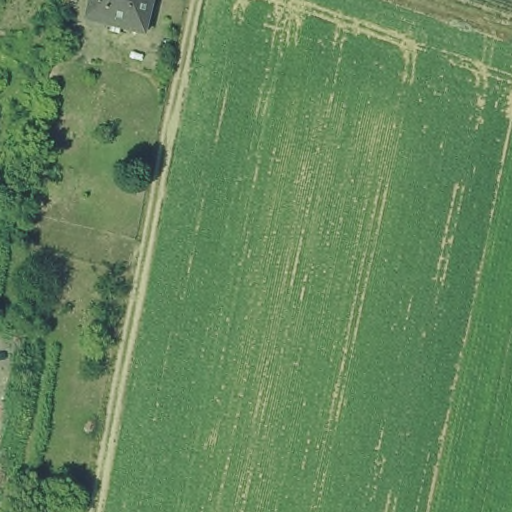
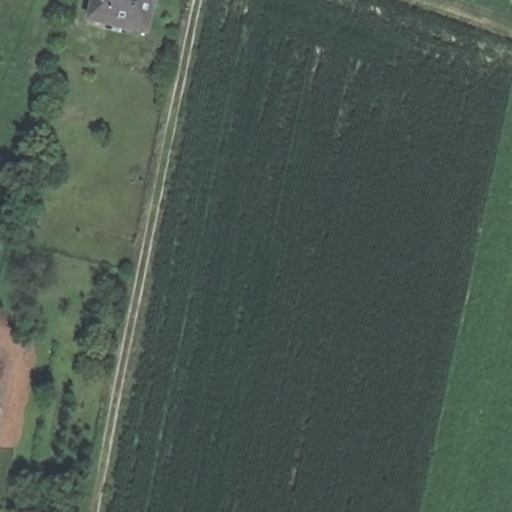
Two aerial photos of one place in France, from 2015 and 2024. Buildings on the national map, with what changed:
unchanged [(101,24),(84,19),(90,0),(157,0),(144,37),(101,24)]

